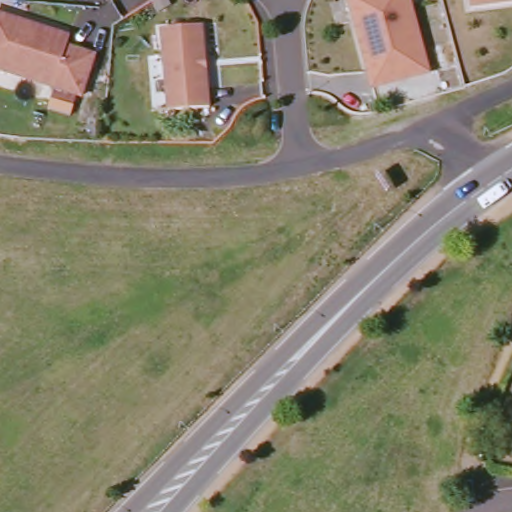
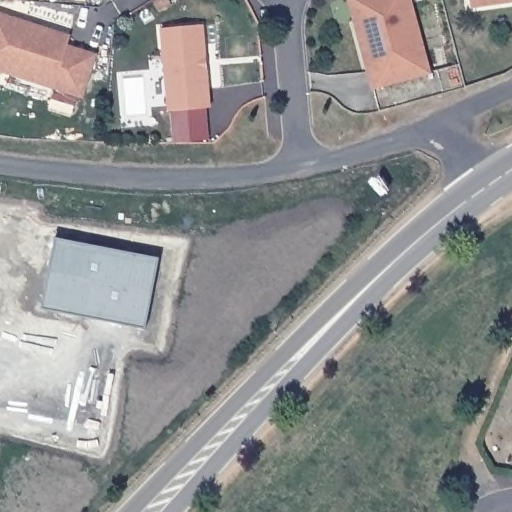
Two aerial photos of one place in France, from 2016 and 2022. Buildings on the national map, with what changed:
unchanged [(431,71),(375,86),(359,28),(350,0),(410,0),(431,71)]
unchanged [(470,8),(469,0),(512,0),(512,2),(470,8)]
unchanged [(16,29),(23,32),(26,25),(70,38),(67,48),(95,59),(80,99),(0,73),(0,18),(18,24),(16,29)]
unchanged [(204,29),(211,113),(171,117),(162,32),(204,29)]
new [(43,309),(62,237),(161,255),(149,329),(43,309)]

